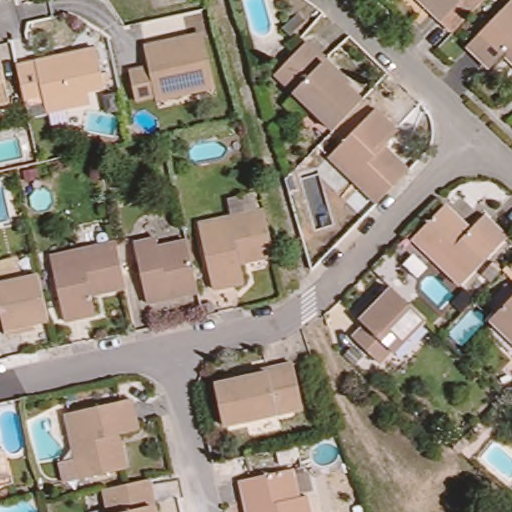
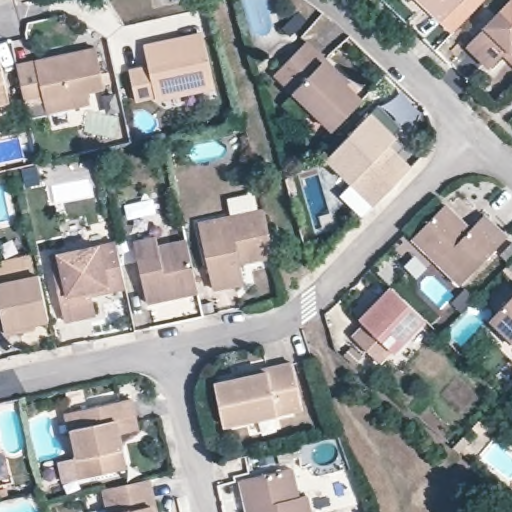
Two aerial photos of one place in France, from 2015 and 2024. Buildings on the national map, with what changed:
unchanged [(444,23),(420,0),(467,0),(444,23)]
unchanged [(490,63),(467,40),(506,0),(512,0),(512,56),(504,48),(490,63)]
unchanged [(156,93),(138,97),(131,67),(150,63),(147,47),(145,40),(203,29),(205,35),(214,81),(156,93)]
unchanged [(51,107),(49,94),(29,98),(21,60),(102,42),(110,81),(93,85),(96,98),(51,107)]
unchanged [(272,79),(302,47),(320,65),(319,67),(361,108),(331,138),(272,79)]
unchanged [(3,68),(12,109),(0,112),(0,69),(3,68)]
unchanged [(377,210),(330,162),(376,113),(399,136),(386,150),(412,176),(377,210)]
unchanged [(243,257),(247,276),(216,281),(203,217),(268,203),(278,248),(243,257)]
unchanged [(417,238),(450,204),(475,228),(488,214),(511,235),(465,283),(417,238)]
unchanged [(148,296),(135,237),(158,233),(160,242),(187,235),(197,285),(148,296)]
unchanged [(126,281),(93,288),(97,308),(66,315),(53,252),(117,238),(126,281)]
unchanged [(22,320),(24,325),(8,328),(0,297),(0,275),(39,266),(50,313),(22,320)]
unchanged [(398,351),(396,348),(384,361),(358,337),(370,323),(360,315),(373,303),(377,307),(397,287),(429,317),(398,351)]
unchanged [(512,301),(512,337),(494,320),(512,301)]
unchanged [(301,406),(225,422),(215,381),(234,376),(233,372),(265,365),(290,359),(301,406)]
unchanged [(68,411),(132,398),(139,428),(119,432),(126,466),(83,475),(68,411)]
unchanged [(304,464),(309,492),(318,490),(322,512),(260,512),(253,474),(304,464)]
unchanged [(155,498),(151,499),(153,512),(112,512),(105,483),(149,473),(155,498)]

